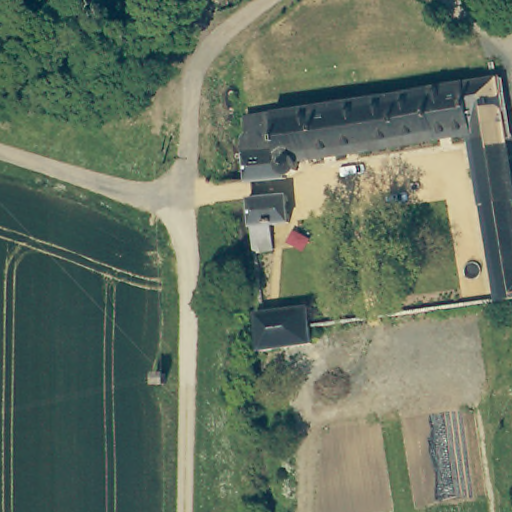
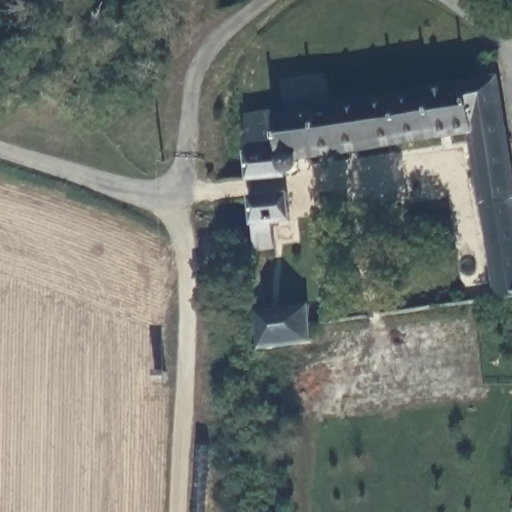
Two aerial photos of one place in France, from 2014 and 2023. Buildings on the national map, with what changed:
unchanged [(506,130),(470,136),(297,160),(298,171),(287,173),(287,179),(248,181),(242,118),(401,92),(454,84),(499,78),(501,87),(506,130)]
unchanged [(512,173),(512,210),(483,213),(470,136),(506,130),(512,173)]
unchanged [(284,222),(269,224),(270,249),(252,252),(247,197),(284,194),(284,222)]
unchanged [(496,299),(483,213),(512,210),(512,296),(496,299)]
unchanged [(311,343),(260,349),(255,310),(262,309),(307,305),(309,326),(311,343)]

